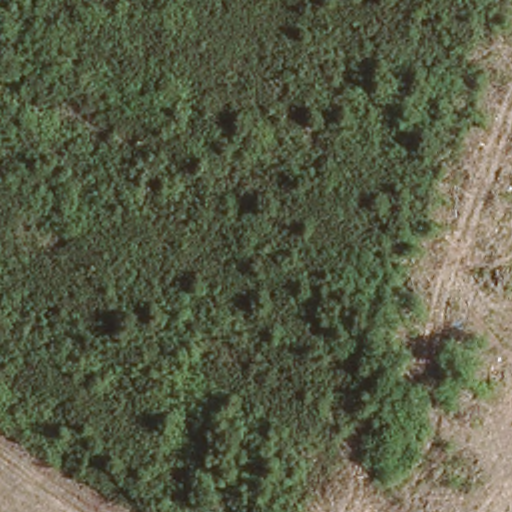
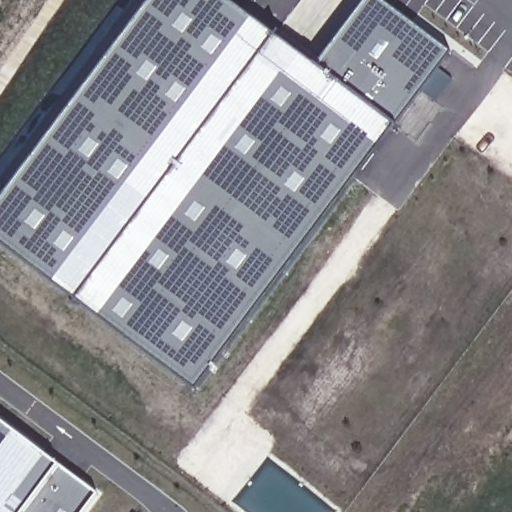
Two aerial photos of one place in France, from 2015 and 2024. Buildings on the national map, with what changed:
new [(316,66),(366,0),(380,0),(449,52),(396,125),(197,392),(0,243),(0,200),(151,0),(228,0),(316,66)]
new [(83,512),(0,512),(0,420),(59,465),(97,492),(83,512)]

